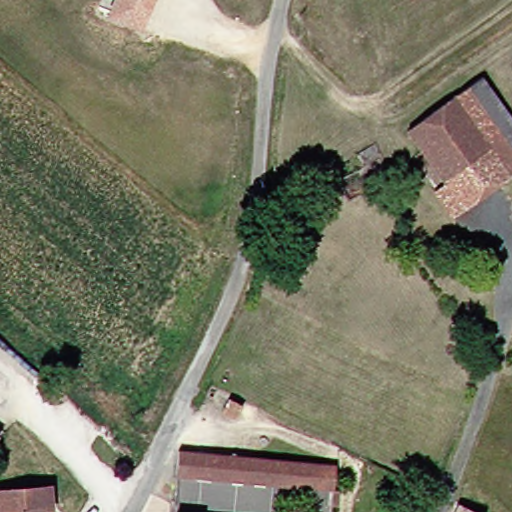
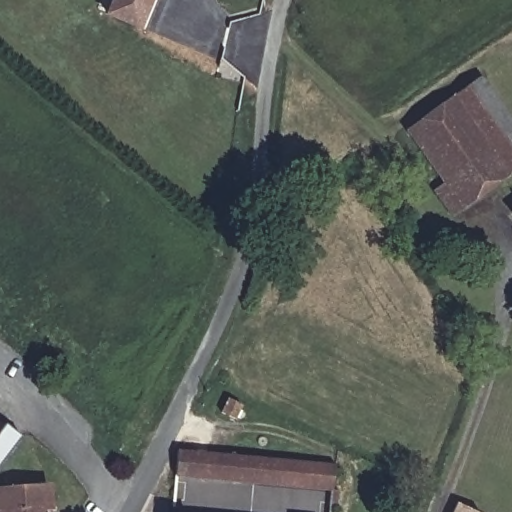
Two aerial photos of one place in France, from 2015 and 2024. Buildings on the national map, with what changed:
unchanged [(143,25),(109,12),(114,0),(153,0),(143,25)]
unchanged [(441,186),(403,133),(477,80),(512,131),(512,174),(494,187),(459,212),(441,225),(423,198),(441,186)]
unchanged [(241,418),(221,407),(229,394),(250,404),(241,418)]
unchanged [(326,493),(169,484),(171,457),(328,469),(326,493)]
unchanged [(0,512),(0,492),(38,494),(37,512),(0,512)]
unchanged [(455,512),(449,512),(449,510),(455,512)]

